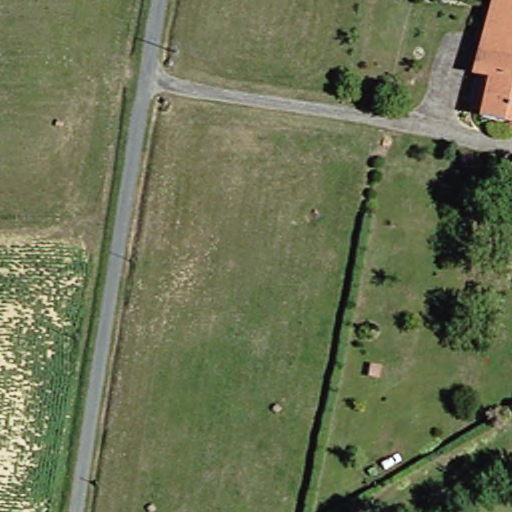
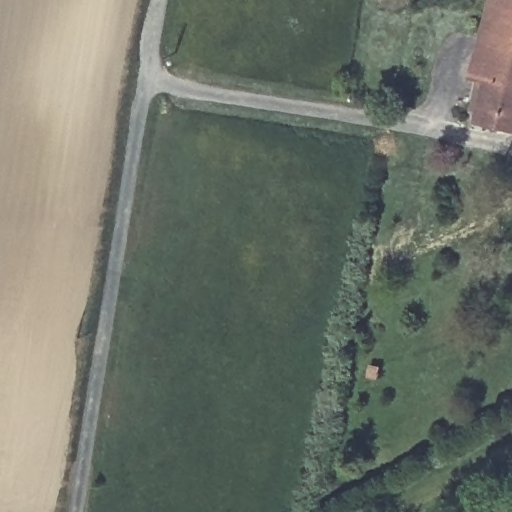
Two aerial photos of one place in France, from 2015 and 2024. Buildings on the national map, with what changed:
unchanged [(503,81),(488,76),(505,0),(512,0),(512,124),(495,119),(503,81)]

